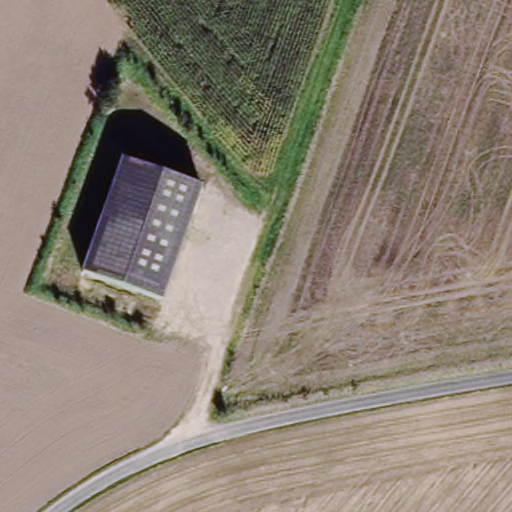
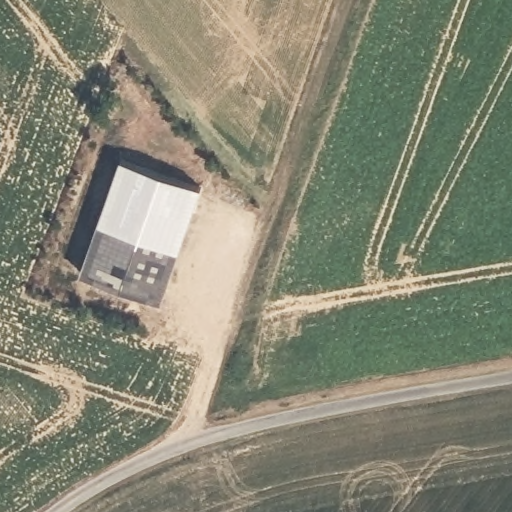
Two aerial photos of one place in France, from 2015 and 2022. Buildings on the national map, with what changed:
unchanged [(155,301),(77,275),(114,162),(193,188),(155,301)]

